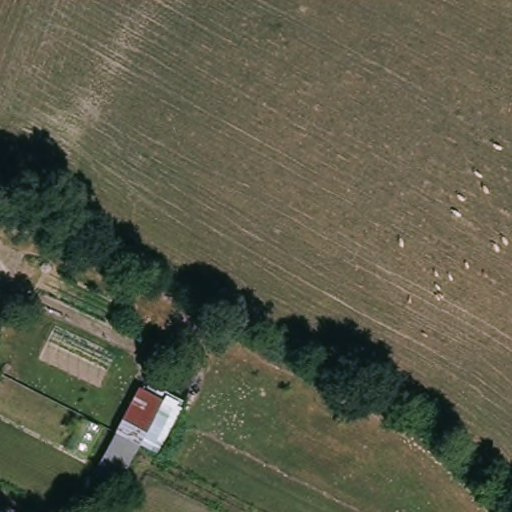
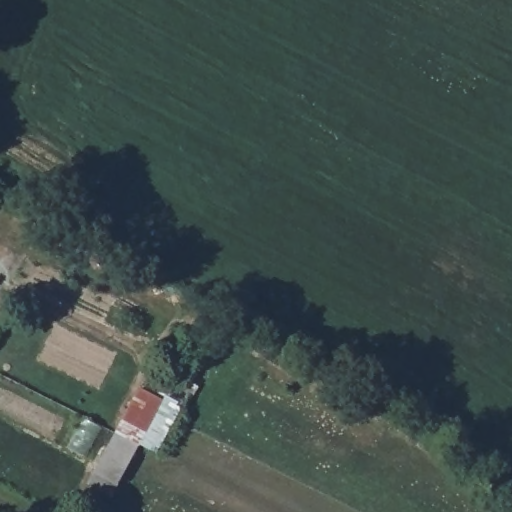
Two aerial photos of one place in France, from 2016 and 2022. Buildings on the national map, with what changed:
unchanged [(141,384),(149,387),(151,380),(157,383),(155,392),(164,396),(141,438),(119,427),(141,384)]
unchanged [(141,438),(116,485),(107,480),(110,473),(97,467),(119,427),(141,438)]

